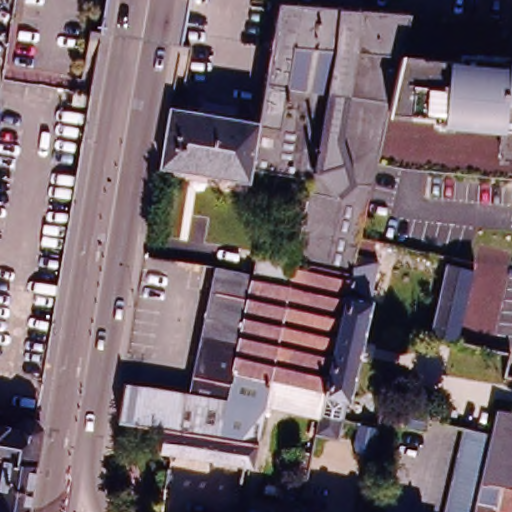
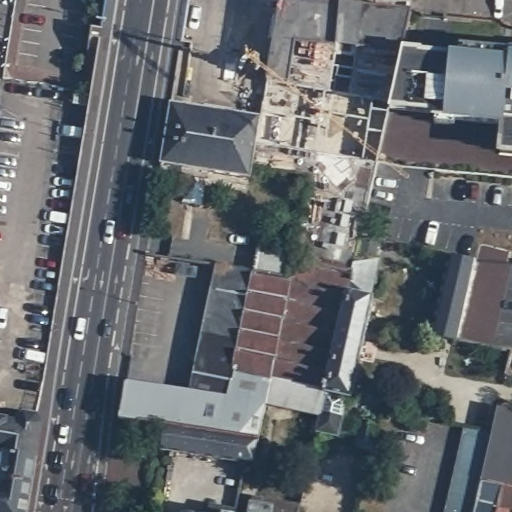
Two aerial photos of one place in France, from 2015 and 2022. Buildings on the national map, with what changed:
unchanged [(319,409),(263,397),(289,274),(293,254),(310,173),(249,160),(256,115),(276,0),(308,0),(351,4),(409,9),(406,26),(405,27),(399,50),(376,157),(372,173),(359,234),(355,249),(376,254),(367,293),(371,294),(348,395),(344,394),(339,414),(334,434),(314,429),(319,409)]
unchanged [(399,50),(449,55),(453,43),(512,48),(512,171),(376,157),(399,50)]
unchanged [(256,115),(249,160),(247,174),(161,159),(169,101),(256,115)]
unchanged [(251,266),(256,244),(288,250),(284,273),(289,274),(263,397),(254,437),(199,427),(163,421),(117,413),(123,376),(190,387),(216,259),(251,266)]
unchanged [(445,254),(471,260),(454,333),(429,327),(445,254)]
unchanged [(480,424),(484,403),(512,410),(512,511),(496,508),(495,512),(439,512),(463,422),(480,424)]
unchanged [(404,425),(407,415),(423,419),(425,409),(438,412),(436,421),(426,419),(423,429),(404,425)]
unchanged [(2,422),(15,424),(15,422),(18,420),(23,416),(35,419),(41,426),(34,463),(31,463),(15,459),(0,457),(0,417),(3,418),(2,422)]
unchanged [(199,427),(254,437),(249,459),(241,458),(169,446),(159,444),(163,421),(199,427)]
unchanged [(357,422),(374,426),(369,452),(351,448),(357,422)]
unchanged [(31,463),(34,463),(26,508),(0,503),(0,457),(15,459),(31,463)]
unchanged [(25,512),(0,512),(0,503),(26,508),(25,512)]
unchanged [(238,503),(282,512),(237,512),(238,503)]
unchanged [(196,508),(211,510),(211,512),(196,512),(196,508)]

